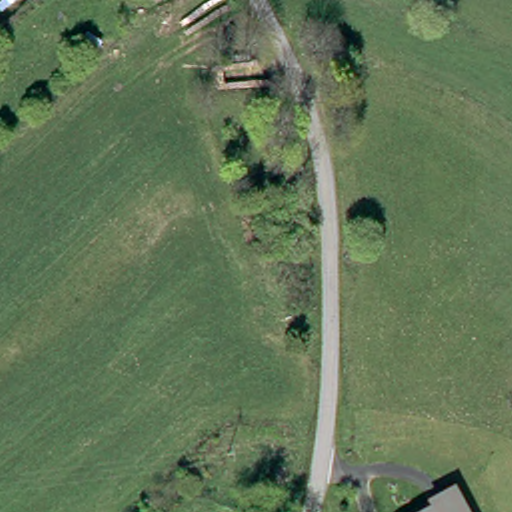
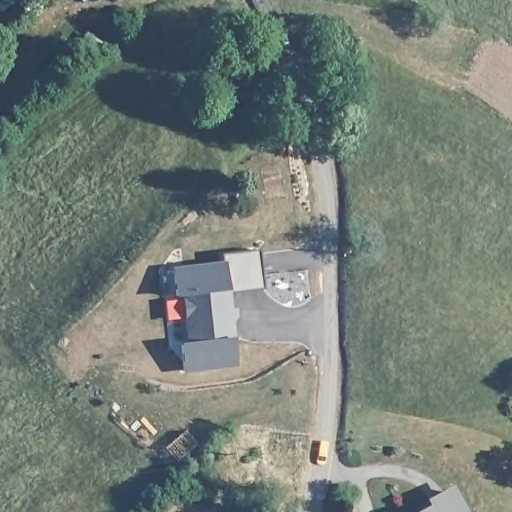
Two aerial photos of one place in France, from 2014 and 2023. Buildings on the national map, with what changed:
new [(260,249),(263,287),(231,291),(232,308),(237,308),(237,319),(234,319),(235,336),(237,366),(185,372),(181,343),(188,342),(185,295),(175,296),(172,267),(222,262),(221,254),(260,249)]
unchanged [(430,501),(450,491),(460,512),(420,512),(433,506),(430,501)]

